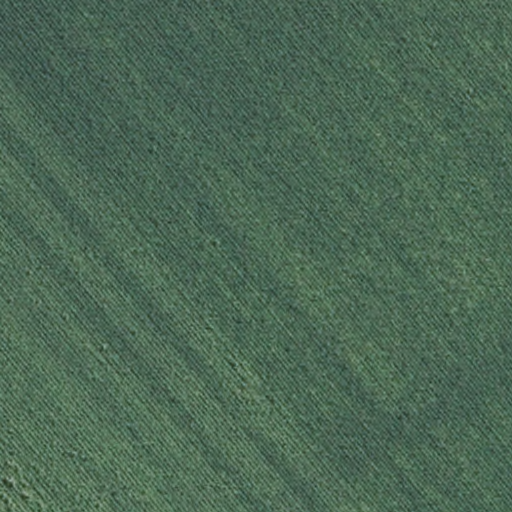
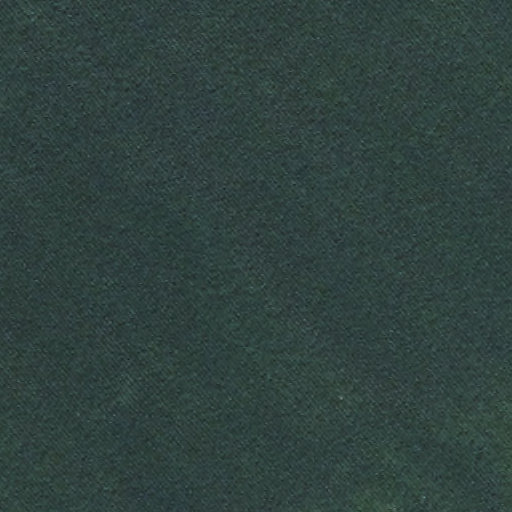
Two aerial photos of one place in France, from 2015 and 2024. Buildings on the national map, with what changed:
[]

